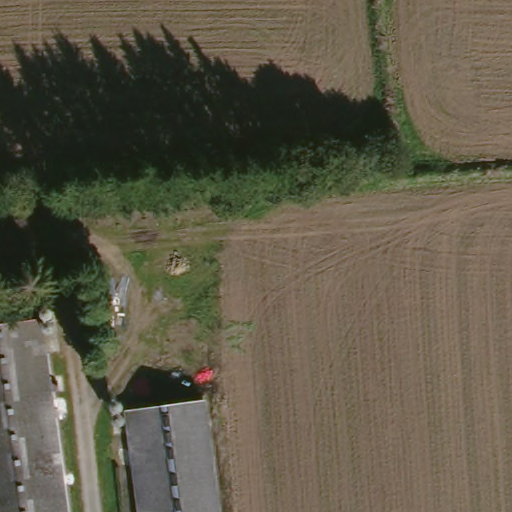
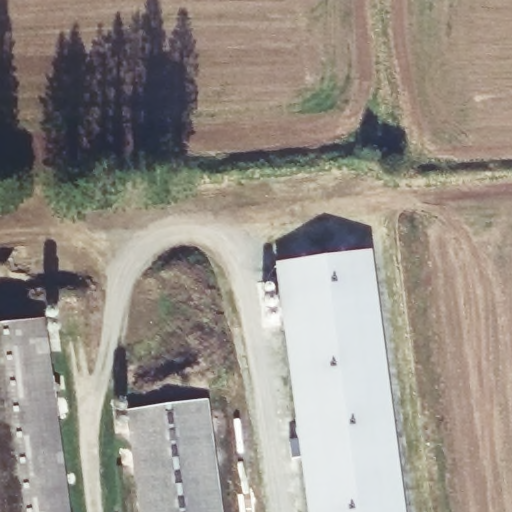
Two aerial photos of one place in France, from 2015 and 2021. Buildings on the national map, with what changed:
new [(307,512),(275,265),(372,252),(405,512),(307,512)]
unchanged [(0,512),(0,336),(43,331),(64,512),(0,512)]
unchanged [(204,407),(217,512),(139,512),(128,415),(204,407)]

